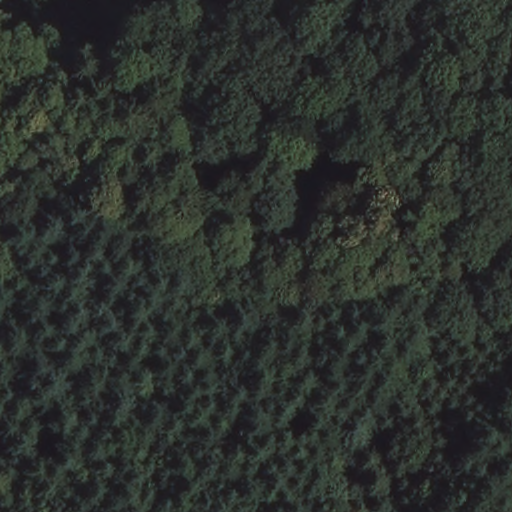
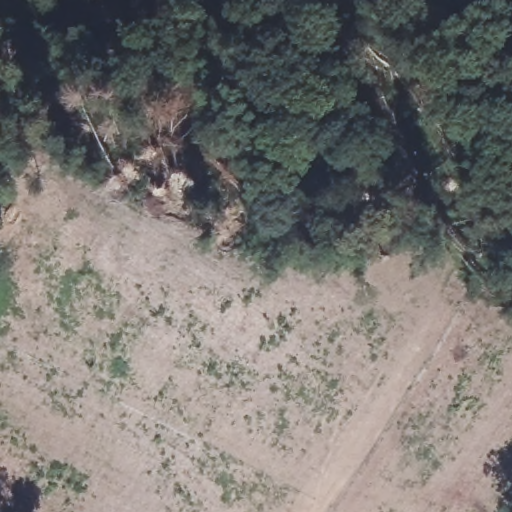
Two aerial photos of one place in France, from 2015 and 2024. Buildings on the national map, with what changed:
[]

